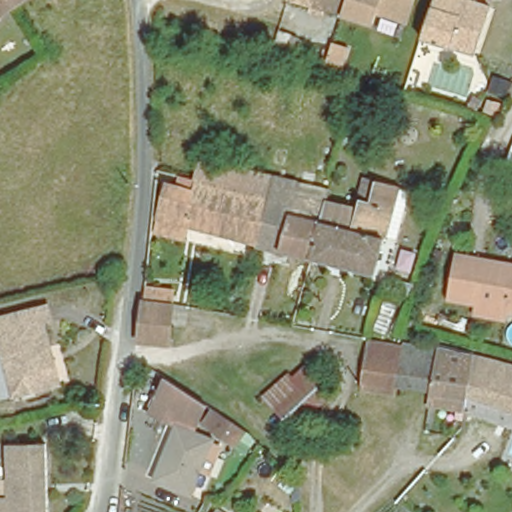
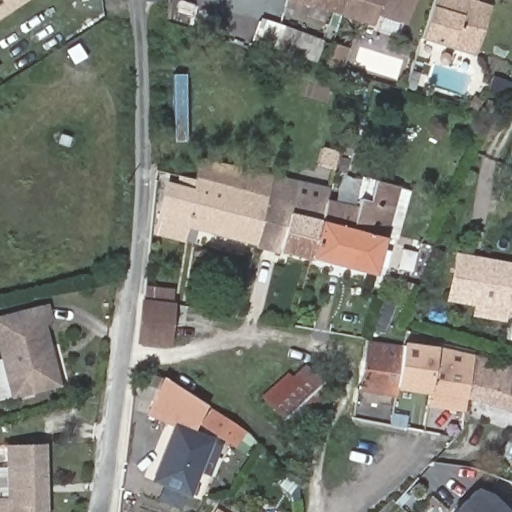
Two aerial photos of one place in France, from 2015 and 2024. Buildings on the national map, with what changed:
unchanged [(15,0),(21,11),(0,25),(0,0),(15,0)]
unchanged [(37,0),(21,11),(15,0),(37,0)]
unchanged [(315,0),(433,0),(423,32),(342,8),(315,0)]
unchanged [(475,48),(423,32),(433,0),(480,0),(489,3),(475,48)]
unchanged [(484,113),(488,100),(499,104),(496,116),(484,113)]
unchanged [(264,198),(193,181),(197,162),(269,178),(323,190),(320,202),(306,255),(305,258),(251,244),(264,198)]
unchanged [(150,231),(153,218),(162,184),(174,187),(177,177),(193,181),(264,198),(251,244),(178,225),(175,238),(150,231)]
unchanged [(306,255),(320,202),(350,209),(358,178),(392,187),(391,190),(403,193),(391,239),(379,235),(369,274),(305,258),(306,255)]
unchanged [(512,315),(508,315),(506,326),(468,318),(470,307),(442,302),(451,260),(512,271),(512,315)]
unchanged [(152,279),(176,281),(175,297),(151,295),(152,279)]
unchanged [(144,302),(173,306),(168,344),(139,341),(144,302)]
unchanged [(0,361),(0,319),(43,308),(48,324),(39,327),(55,387),(9,399),(0,361)]
unchanged [(391,386),(390,393),(357,387),(365,339),(398,344),(391,386)]
unchanged [(431,350),(425,391),(391,386),(398,344),(431,350)]
unchanged [(425,391),(431,350),(468,357),(462,397),(459,411),(423,405),(425,391)]
unchanged [(499,363),(512,367),(512,410),(489,402),(487,406),(462,397),(468,357),(499,363)]
unchanged [(332,393),(295,427),(264,394),(288,373),(293,378),(305,366),(332,393)]
unchanged [(210,470),(200,466),(192,488),(155,473),(177,422),(150,412),(165,372),(208,400),(196,430),(212,436),(222,440),(210,470)]
unchanged [(245,425),(235,440),(204,419),(214,404),(245,425)]
unchanged [(57,510),(2,512),(2,489),(17,489),(17,437),(55,436),(56,478),(56,486),(57,510)]
new [(490,493),(509,512),(453,512),(477,488),(490,493)]

